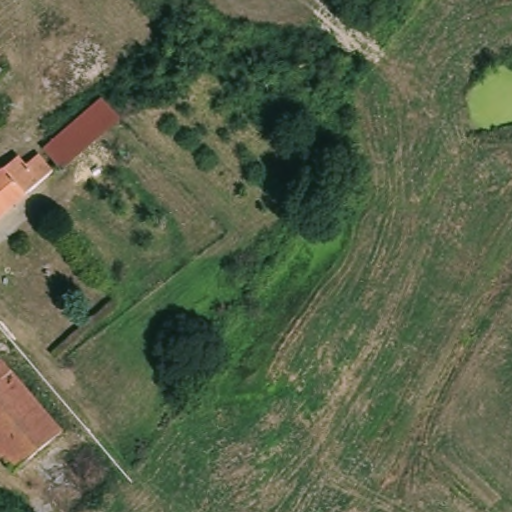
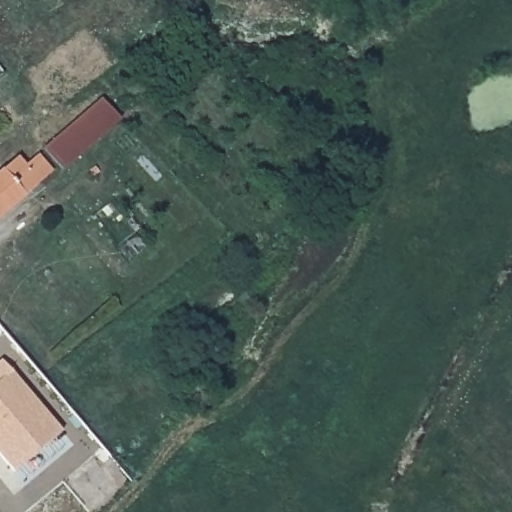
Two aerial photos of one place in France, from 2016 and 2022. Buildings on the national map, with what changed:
unchanged [(102,109),(118,131),(62,181),(43,158),(102,109)]
unchanged [(19,162),(27,171),(37,163),(51,182),(36,195),(0,225),(0,178),(7,172),(12,167),(19,162)]
unchanged [(60,435),(17,476),(0,456),(0,365),(2,364),(60,435)]

